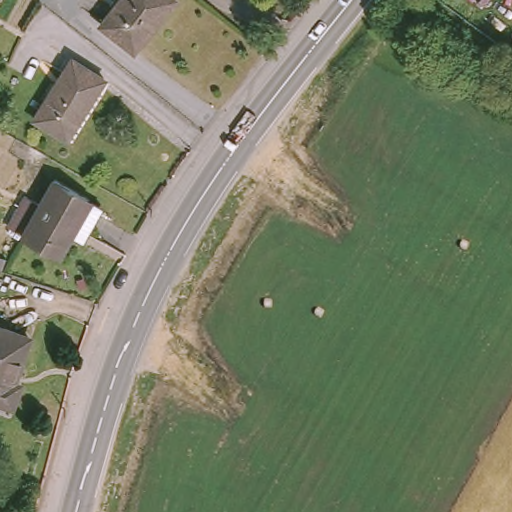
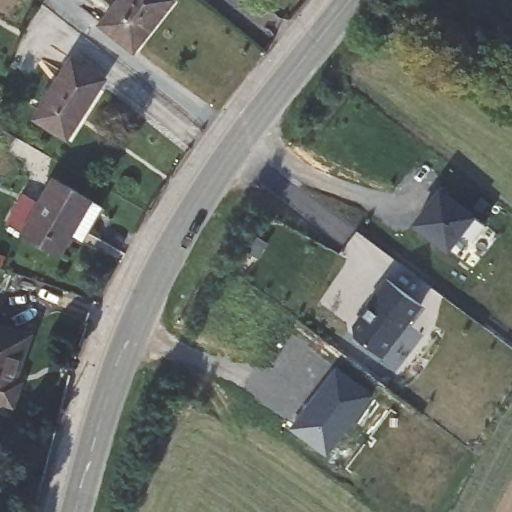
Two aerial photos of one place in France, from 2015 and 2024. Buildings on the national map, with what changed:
unchanged [(119,0),(172,0),(152,25),(151,22),(131,47),(101,24),(119,0)]
unchanged [(33,117),(71,57),(104,79),(66,138),(33,117)]
unchanged [(24,194),(39,202),(54,177),(102,205),(87,232),(72,224),(68,231),(71,232),(59,254),(7,223),(24,194)]
new [(442,187),(486,221),(474,237),(462,228),(450,245),(417,220),(442,187)]
new [(354,324),(367,305),(389,276),(422,302),(383,353),(355,332),(354,324)]
unchanged [(24,377),(16,398),(0,393),(0,318),(34,330),(18,375),(24,377)]
new [(289,428),(336,366),(375,395),(327,456),(289,428)]

